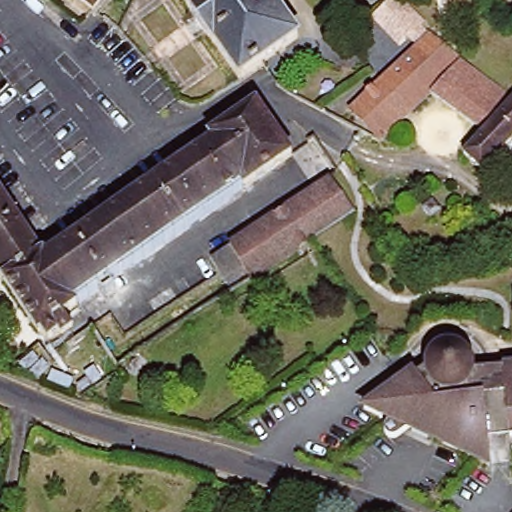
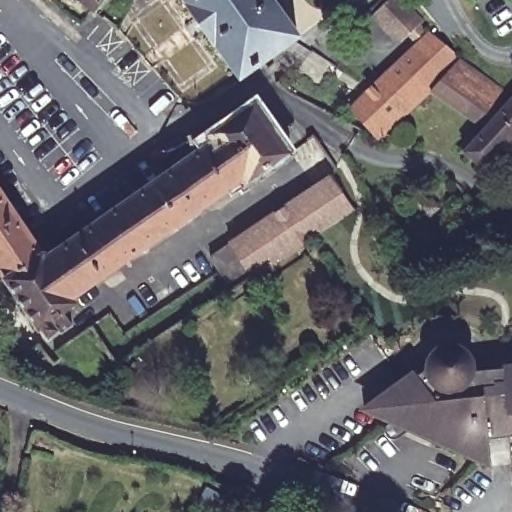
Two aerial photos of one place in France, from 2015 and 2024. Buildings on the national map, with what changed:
unchanged [(96,12),(80,0),(106,0),(96,12)]
unchanged [(300,39),(264,64),(242,79),(185,0),(272,0),(300,39)]
unchanged [(427,19),(425,23),(422,20),(414,29),(415,31),(406,40),(392,27),(380,14),(394,0),(408,0),(427,19)]
unchanged [(414,29),(422,20),(425,23),(433,30),(434,29),(463,57),(437,89),(386,139),(357,108),(424,39),(415,31),(414,29)]
unchanged [(463,57),(512,92),(512,102),(490,128),(437,89),(463,57)]
unchanged [(56,328),(55,327),(44,335),(35,324),(35,325),(2,275),(0,273),(0,191),(41,251),(57,240),(64,235),(207,135),(203,130),(252,96),(285,144),(287,147),(239,180),(235,175),(88,282),(99,298),(56,328)]
unchanged [(470,152),(478,143),(490,128),(512,102),(512,144),(490,169),(470,152)]
unchanged [(234,286),(226,275),(248,261),(233,237),(337,168),(337,170),(362,205),(315,235),(235,289),(234,286)]
unchanged [(455,344),(466,344),(472,350),(477,355),(480,363),(479,368),(492,369),(507,369),(512,368),(512,422),(493,426),(500,469),(410,428),(404,437),(400,439),(395,438),(392,435),(393,431),(399,423),(371,411),(420,370),(424,375),(434,368),(436,358),(439,352),(447,346),(455,344)]

